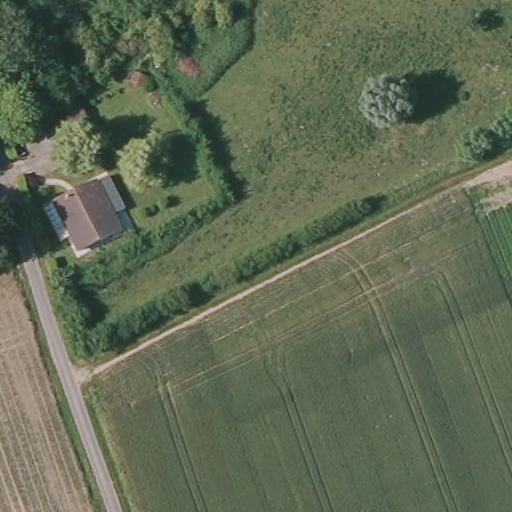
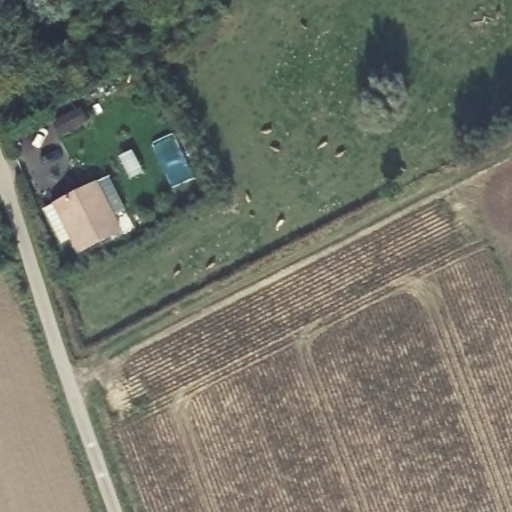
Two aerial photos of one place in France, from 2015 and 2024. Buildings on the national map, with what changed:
unchanged [(223,21),(168,51),(154,24),(201,0),(213,0),(223,21)]
unchanged [(121,35),(137,25),(148,44),(141,47),(148,59),(140,64),(132,52),(121,35)]
unchanged [(117,216),(109,222),(115,234),(75,256),(49,208),(98,181),(117,216)]

